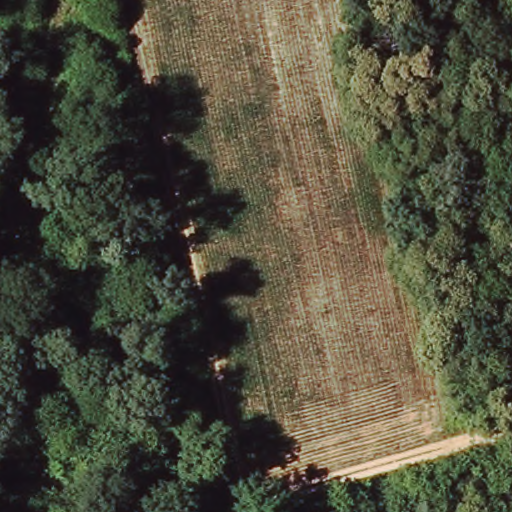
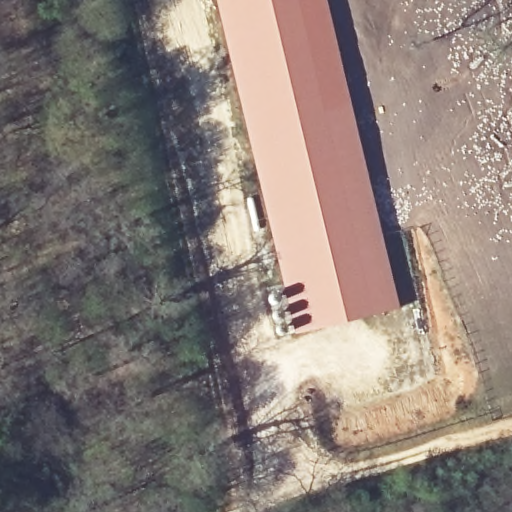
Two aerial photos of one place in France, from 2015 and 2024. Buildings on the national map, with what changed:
new [(330,0),(400,306),(298,331),(221,0),(330,0)]

